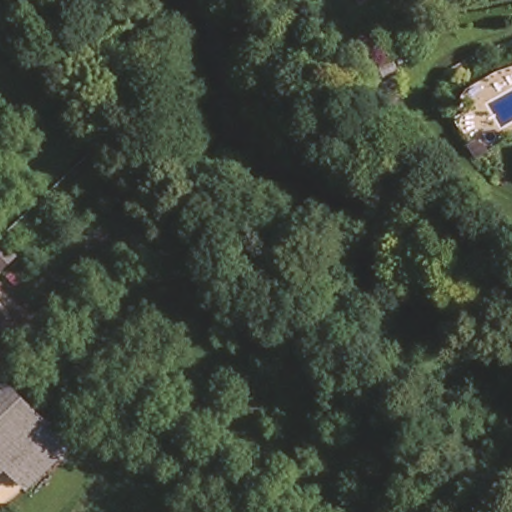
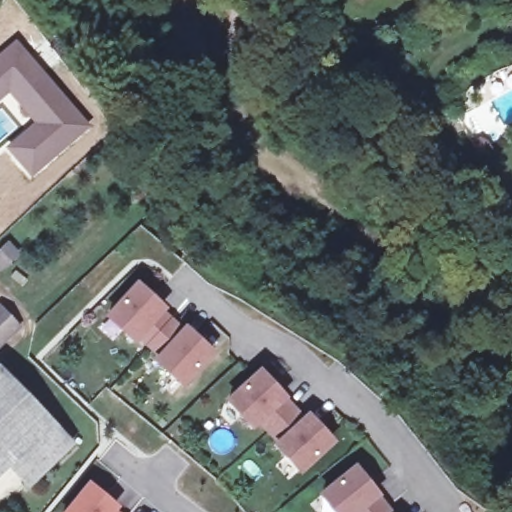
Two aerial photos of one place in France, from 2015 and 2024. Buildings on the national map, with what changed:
unchanged [(371,5),(368,0),(377,0),(371,5)]
new [(90,126),(31,177),(4,147),(31,122),(8,94),(0,100),(0,51),(14,39),(90,126)]
unchanged [(507,143),(501,132),(506,130),(509,135),(512,133),(512,140),(507,143)]
new [(136,282),(166,308),(163,311),(181,327),(184,323),(216,352),(183,388),(153,360),(156,355),(138,339),(133,344),(103,315),(136,282)]
unchanged [(0,346),(0,304),(21,326),(0,346)]
new [(258,367),(304,416),(308,412),(336,442),(301,475),(272,443),(275,441),(259,424),(253,430),(223,399),(258,367)]
unchanged [(0,383),(9,374),(78,447),(36,486),(15,465),(0,449),(0,383)]
unchanged [(0,480),(0,449),(15,465),(0,480)]
new [(394,512),(332,512),(317,494),(354,464),(394,512)]
new [(116,510),(119,512),(63,512),(86,481),(119,506),(116,510)]

